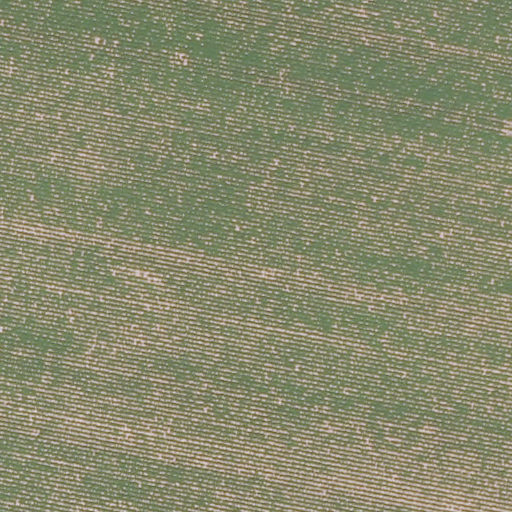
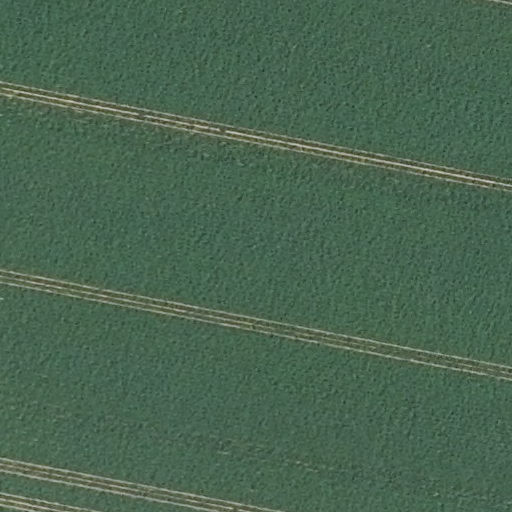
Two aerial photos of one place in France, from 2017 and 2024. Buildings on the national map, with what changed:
[]

